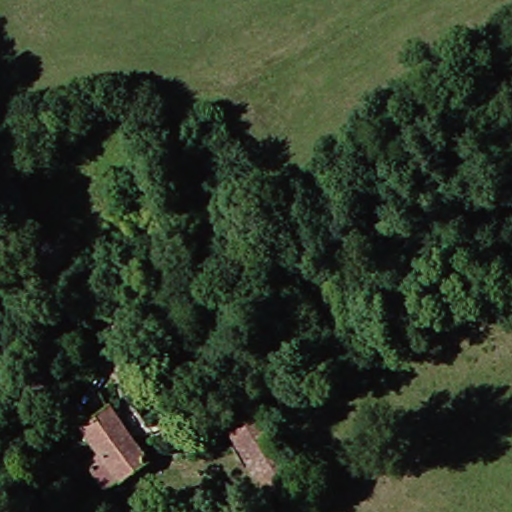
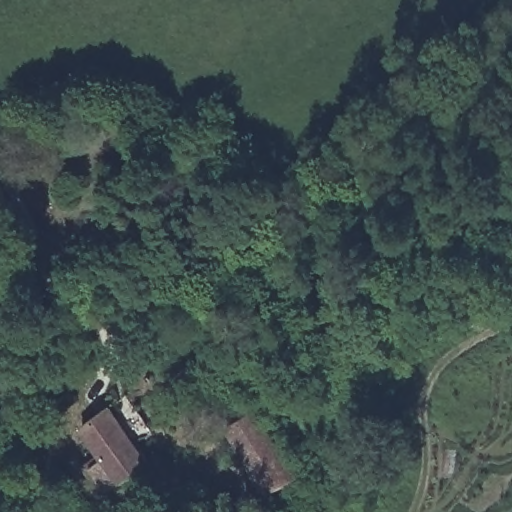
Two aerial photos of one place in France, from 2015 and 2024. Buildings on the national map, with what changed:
unchanged [(124,426),(129,435),(132,442),(148,471),(115,490),(99,461),(82,432),(90,428),(117,413),(124,426)]
unchanged [(268,504),(249,466),(229,430),(261,415),(301,488),(273,501),(268,504)]

